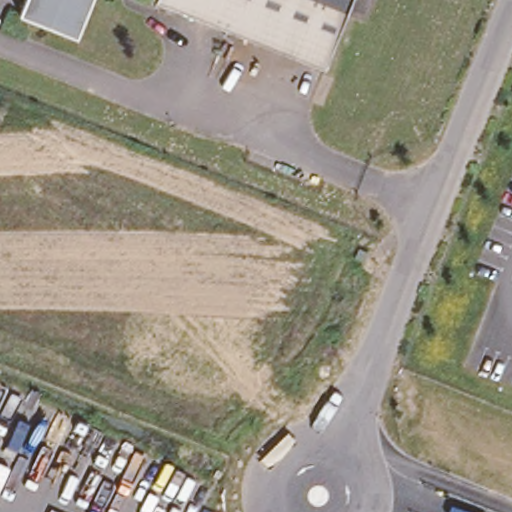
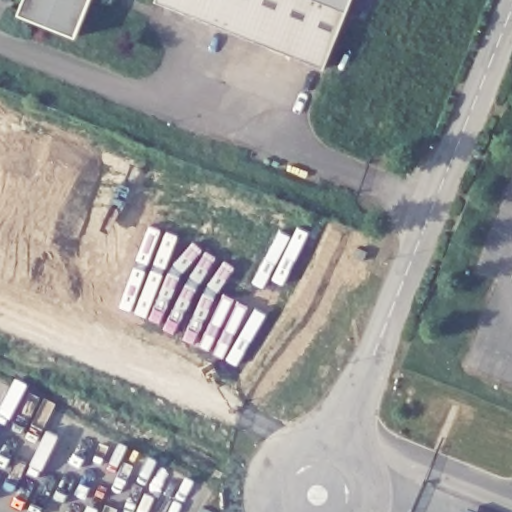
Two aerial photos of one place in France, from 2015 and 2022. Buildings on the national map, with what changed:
unchanged [(13,12),(18,0),(87,0),(73,36),(13,12)]
unchanged [(153,2),(153,0),(349,0),(321,70),(153,2)]

